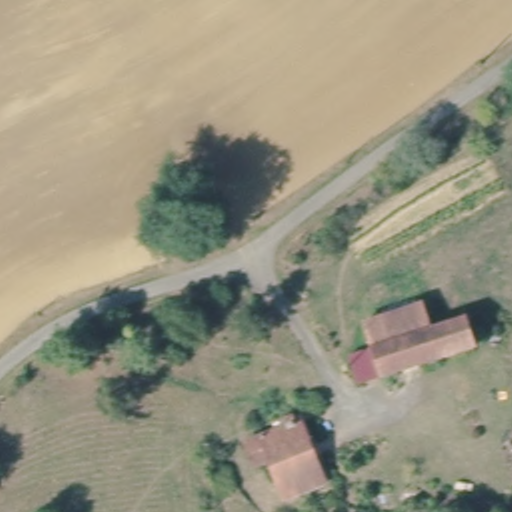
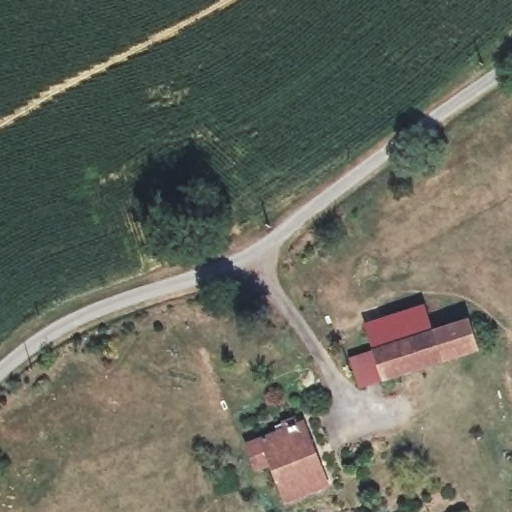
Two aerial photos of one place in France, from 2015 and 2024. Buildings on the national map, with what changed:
unchanged [(367,318),(426,303),(433,332),(373,346),(367,318)]
unchanged [(373,346),(433,332),(467,323),(475,352),(355,382),(347,355),(373,346)]
unchanged [(281,433),(280,425),(297,418),(302,426),(306,424),(330,490),(289,502),(274,462),(257,469),(249,445),(281,433)]

